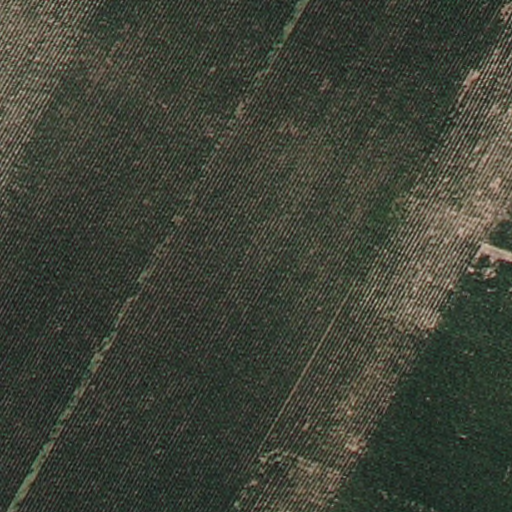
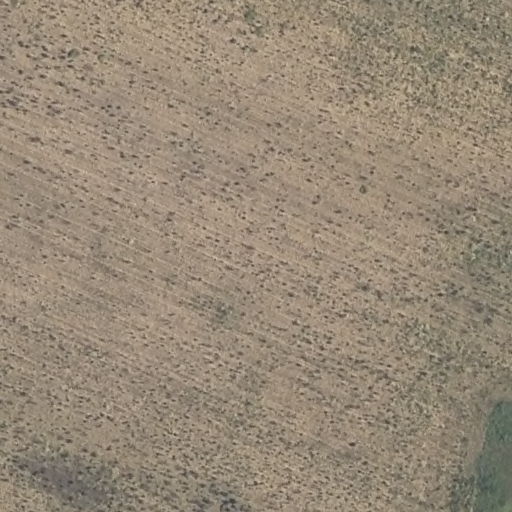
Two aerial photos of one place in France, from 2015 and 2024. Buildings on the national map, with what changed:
[]

